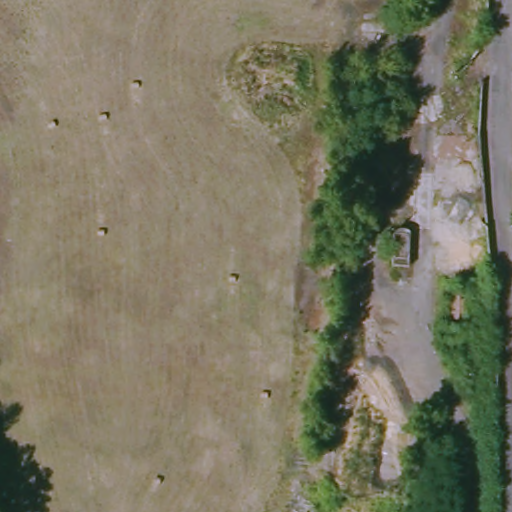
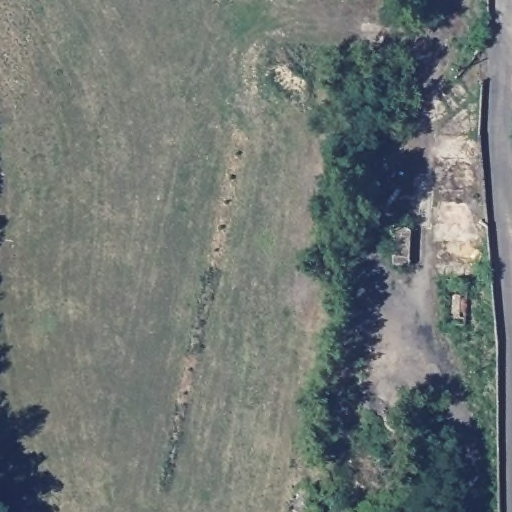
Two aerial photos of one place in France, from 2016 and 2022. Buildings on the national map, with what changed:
unchanged [(387,253),(389,229),(407,231),(405,255),(387,253)]

